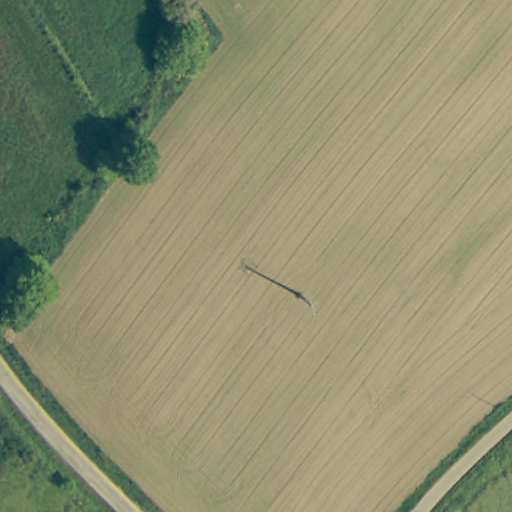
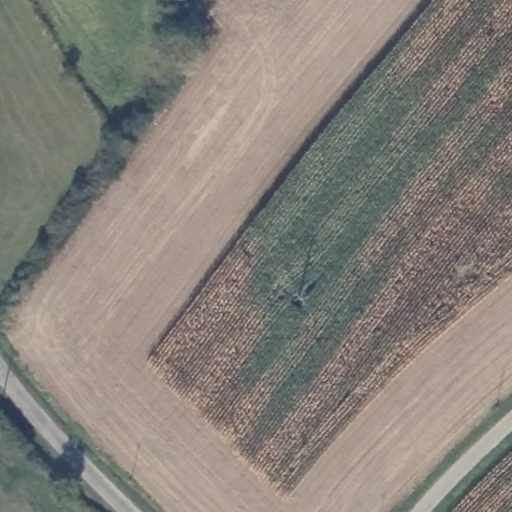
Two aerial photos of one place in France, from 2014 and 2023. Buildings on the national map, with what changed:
[]

